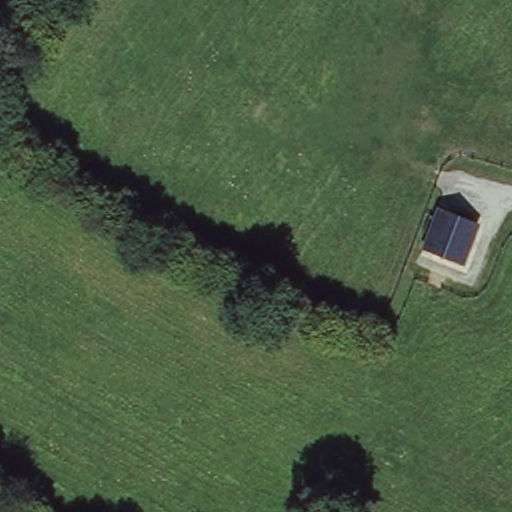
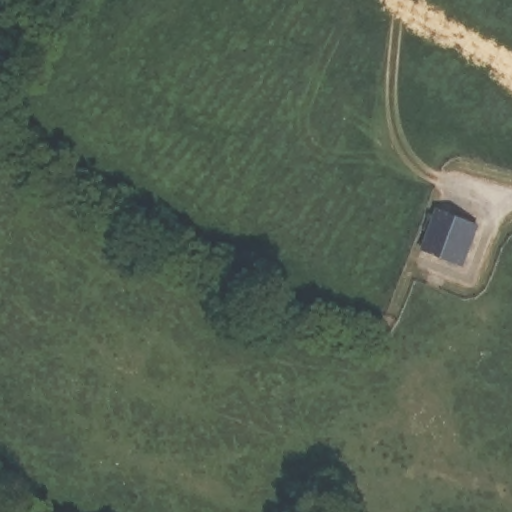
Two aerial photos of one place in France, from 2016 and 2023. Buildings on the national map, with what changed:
unchanged [(482,226),(467,268),(437,257),(422,252),(439,209),(452,214),(482,226)]

